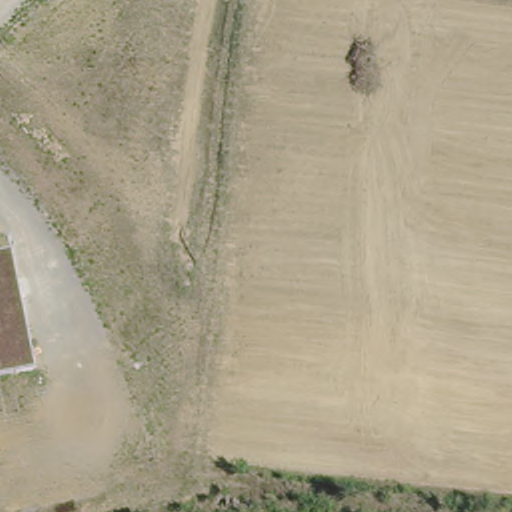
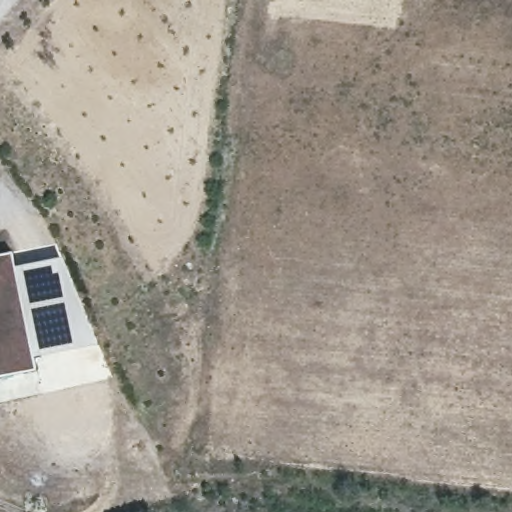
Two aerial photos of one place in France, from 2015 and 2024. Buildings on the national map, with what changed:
unchanged [(35,366),(0,374),(0,254),(12,251),(35,366)]
new [(63,255),(99,341),(34,356),(15,266),(63,255)]

